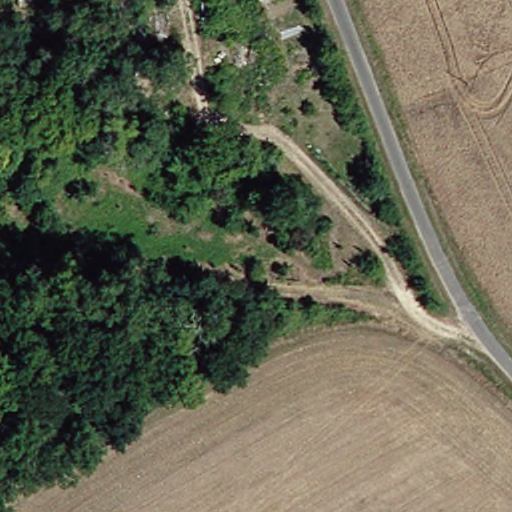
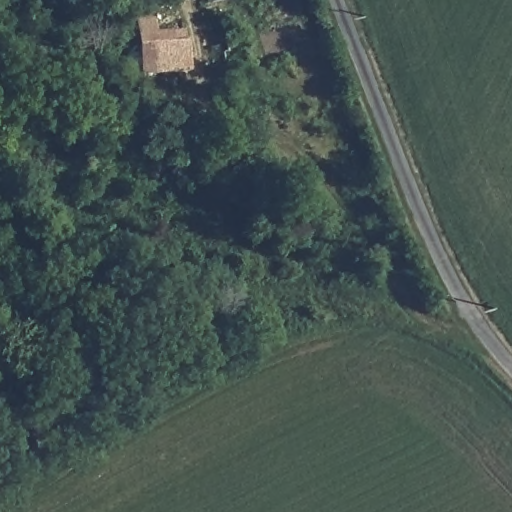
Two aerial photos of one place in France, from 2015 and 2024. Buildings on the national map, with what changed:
new [(154,20),(155,34),(183,31),(187,45),(189,73),(139,79),(134,21),(154,20)]

